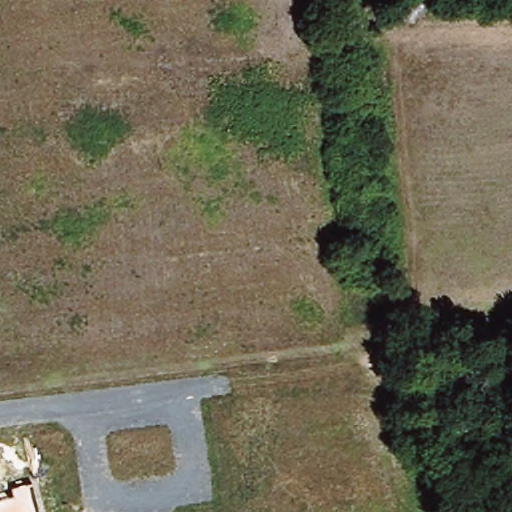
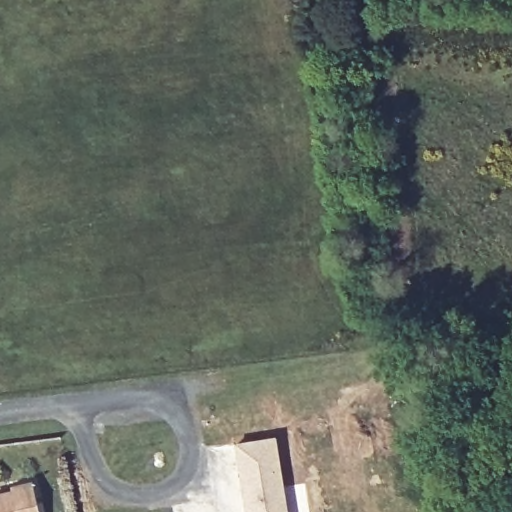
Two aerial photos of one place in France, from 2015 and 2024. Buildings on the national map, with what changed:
new [(286,512),(245,512),(234,444),(275,438),(286,512)]
unchanged [(11,495),(9,485),(32,480),(39,512),(0,512),(0,498),(11,495)]

